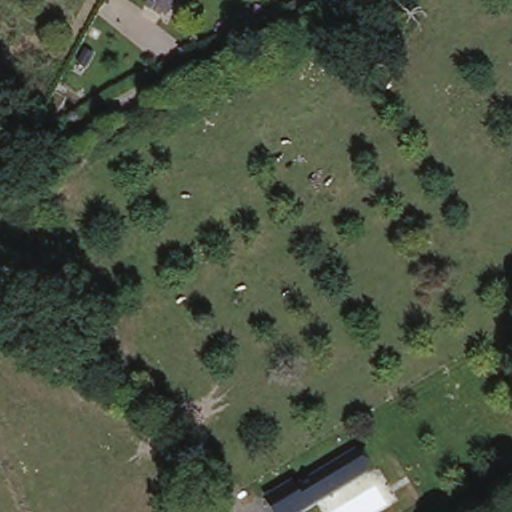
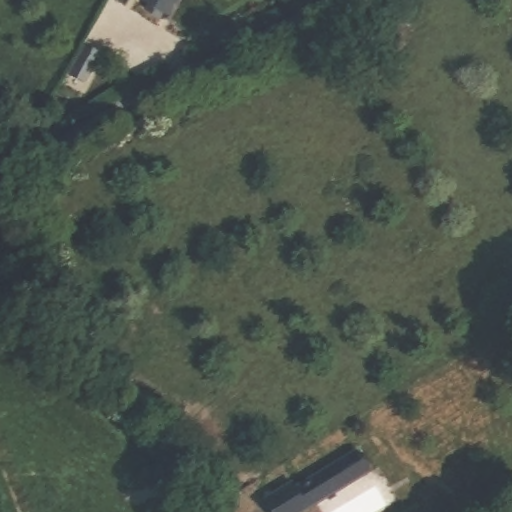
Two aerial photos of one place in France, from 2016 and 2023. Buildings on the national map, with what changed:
unchanged [(146,0),(175,0),(176,1),(172,7),(165,2),(161,9),(146,0)]
unchanged [(295,480),(358,444),(372,466),(299,512),(273,512),(262,495),(294,476),(295,480)]

